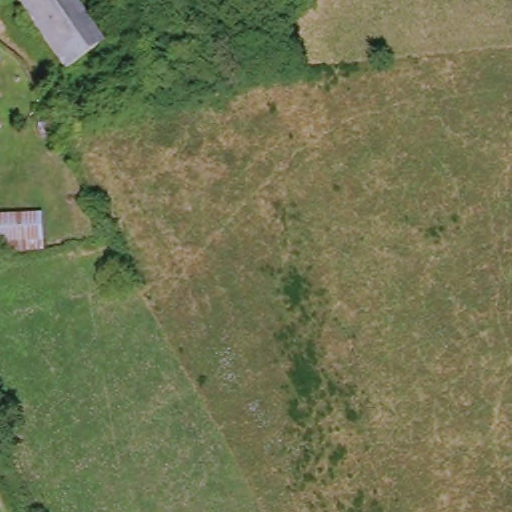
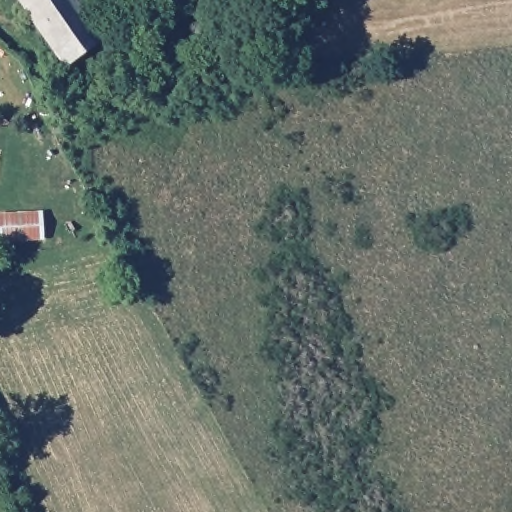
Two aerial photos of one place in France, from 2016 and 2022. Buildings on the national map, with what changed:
unchanged [(89,20),(102,39),(61,70),(10,0),(59,0),(81,29),(89,20)]
unchanged [(41,254),(0,255),(0,215),(41,215),(41,254)]

